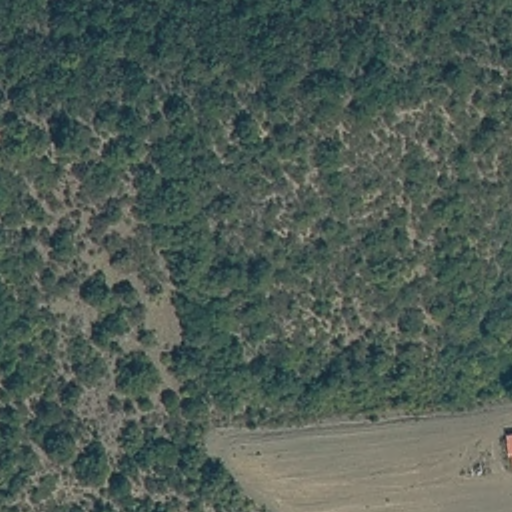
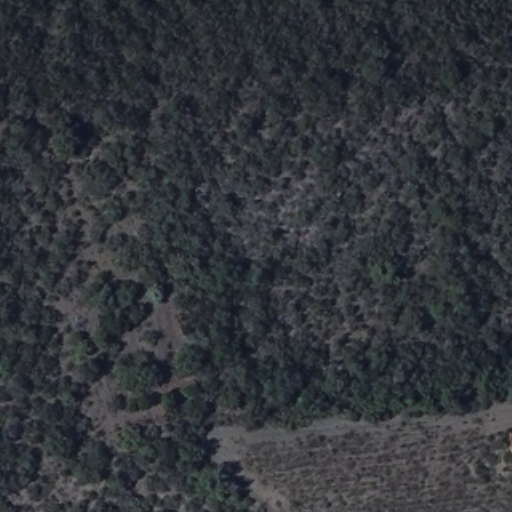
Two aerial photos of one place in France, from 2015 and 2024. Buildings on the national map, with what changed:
unchanged [(512,430),(512,454),(509,430),(512,430)]

